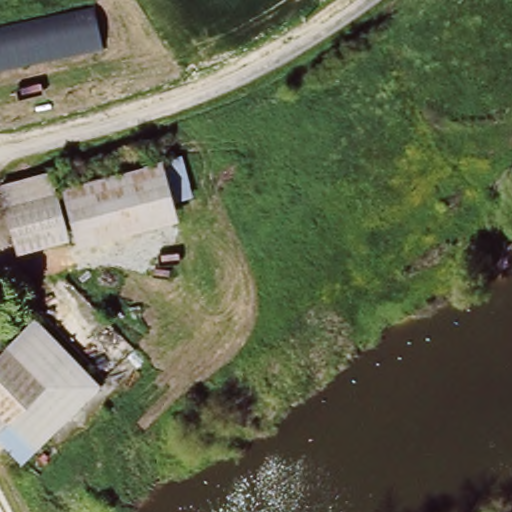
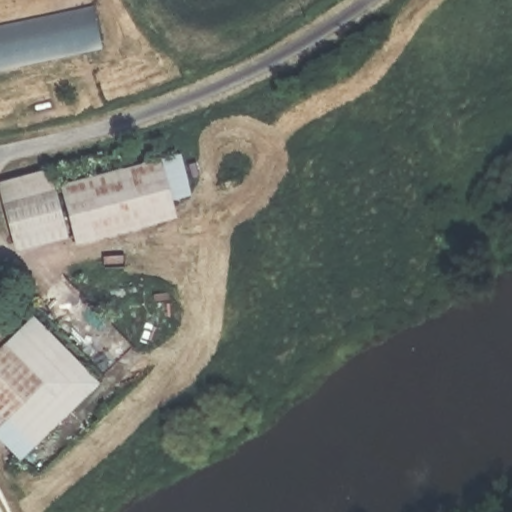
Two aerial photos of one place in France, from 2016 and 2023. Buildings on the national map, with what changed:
unchanged [(93,6),(101,46),(0,68),(0,25),(93,6)]
unchanged [(192,192),(173,200),(177,217),(74,243),(73,237),(15,252),(0,198),(0,180),(53,166),(58,185),(161,157),(162,160),(180,151),(192,192)]
unchanged [(33,294),(33,304),(30,308),(15,308),(15,294),(33,294)]
unchanged [(1,333),(6,339),(32,314),(101,382),(18,460),(0,442),(0,332),(1,333)]

